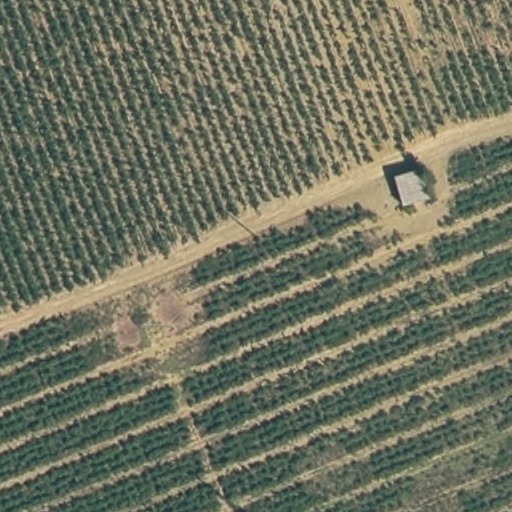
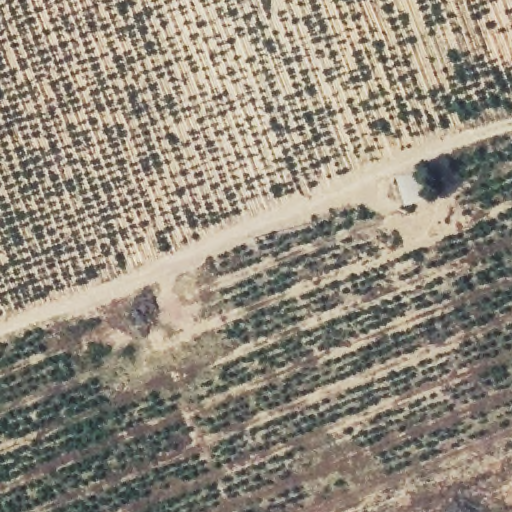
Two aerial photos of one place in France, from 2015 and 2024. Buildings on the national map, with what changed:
unchanged [(404,210),(394,178),(422,170),(431,202),(404,210)]

